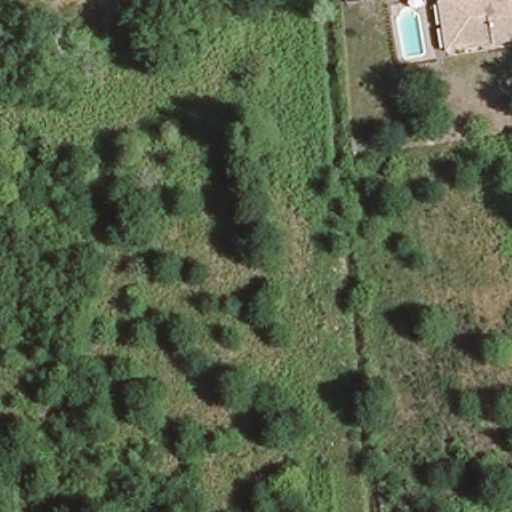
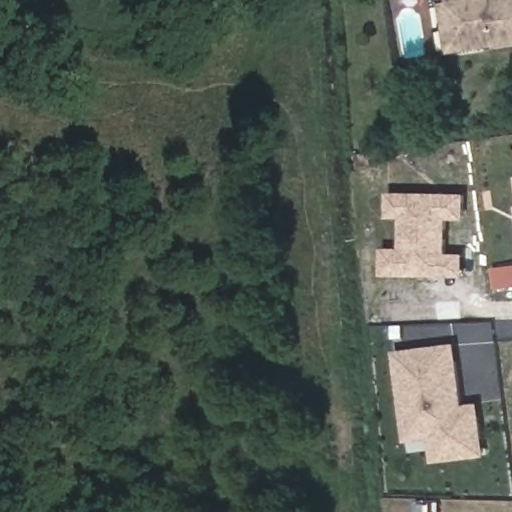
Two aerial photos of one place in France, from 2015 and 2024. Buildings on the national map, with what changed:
unchanged [(450,27),(447,0),(512,0),(512,42),(494,44),(446,51),(443,28),(450,27)]
new [(450,253),(462,253),(461,276),(385,275),(385,246),(400,247),(400,214),(386,214),(387,191),(466,192),(466,219),(447,218),(450,253)]
new [(512,265),(512,287),(495,289),(491,268),(512,265)]
new [(465,404),(480,402),(485,455),(430,458),(430,438),(406,441),(394,349),(456,342),(465,404)]

